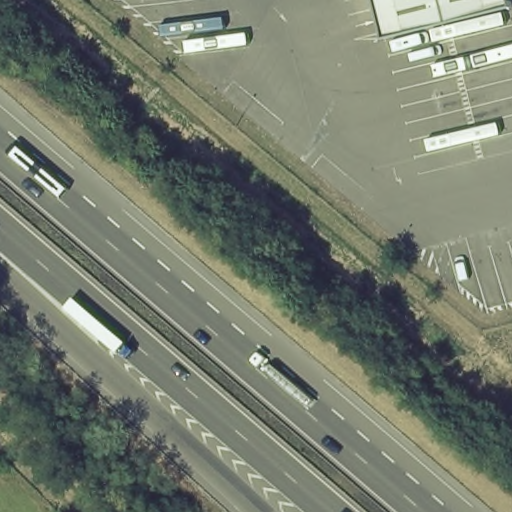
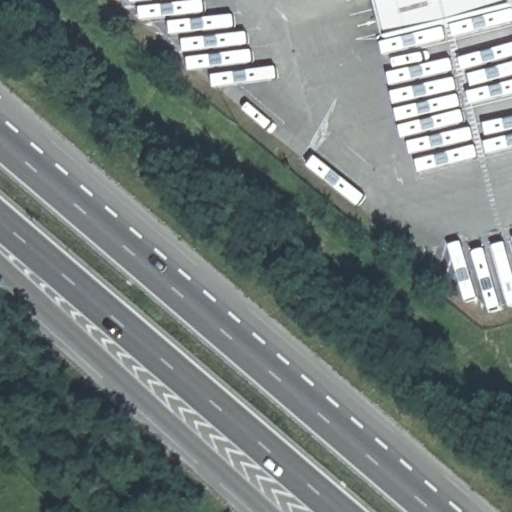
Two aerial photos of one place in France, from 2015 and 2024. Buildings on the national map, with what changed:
unchanged [(393,40),(382,0),(512,0),(512,7),(393,40)]
unchanged [(366,246),(364,238),(373,237),(374,245),(366,246)]

